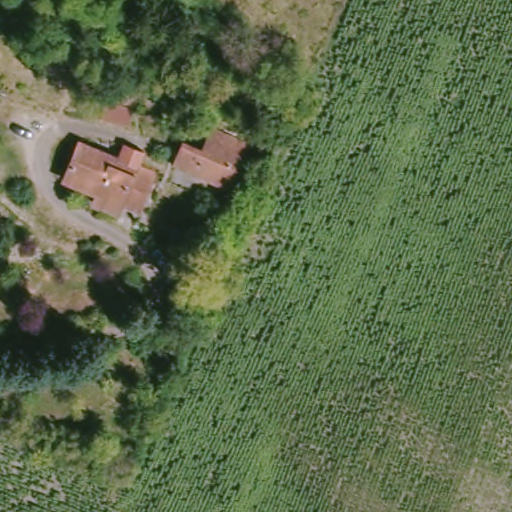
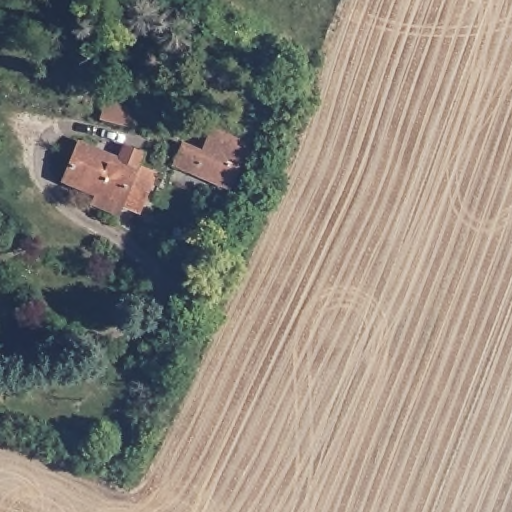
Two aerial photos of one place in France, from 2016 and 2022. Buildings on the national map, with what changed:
unchanged [(119,89),(136,90),(146,114),(115,110),(119,89)]
unchanged [(177,160),(185,140),(210,148),(218,127),(250,138),(232,180),(215,174),(212,184),(174,169),(177,160)]
unchanged [(95,203),(98,191),(65,182),(76,144),(152,166),(142,204),(125,199),(121,211),(95,203)]

